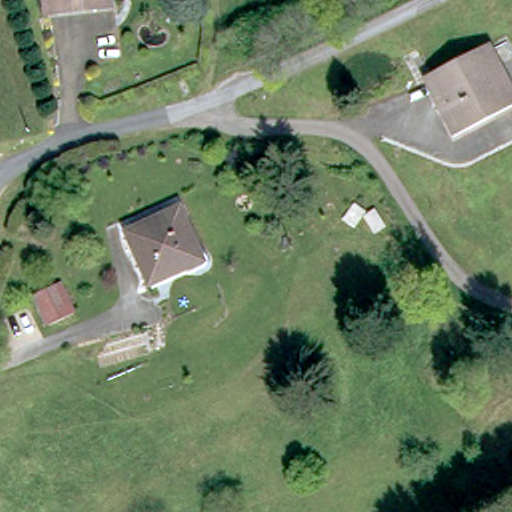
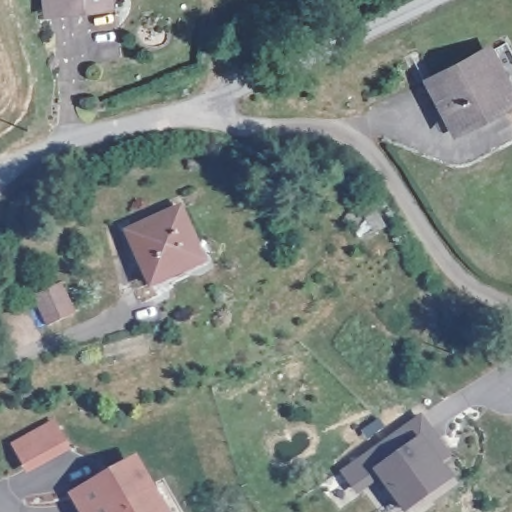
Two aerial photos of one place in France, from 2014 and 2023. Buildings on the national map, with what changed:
unchanged [(40,0),(106,0),(107,8),(42,13),(40,0)]
unchanged [(512,74),(512,96),(443,127),(422,78),(497,43),(512,74)]
unchanged [(200,237),(188,243),(196,262),(152,280),(131,227),(186,203),(200,237)]
unchanged [(78,310),(47,322),(34,292),(63,280),(78,310)]
new [(441,463),(454,479),(410,512),(402,512),(373,470),(362,454),(422,414),(452,455),(441,463)]
new [(52,421),(68,451),(27,473),(11,444),(52,421)]
new [(80,512),(69,493),(136,455),(170,512),(80,512)]

